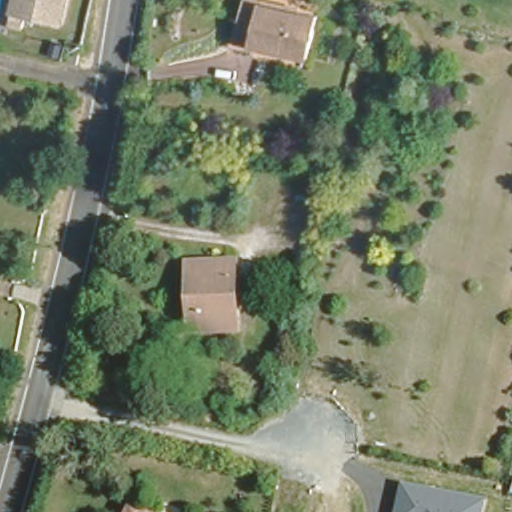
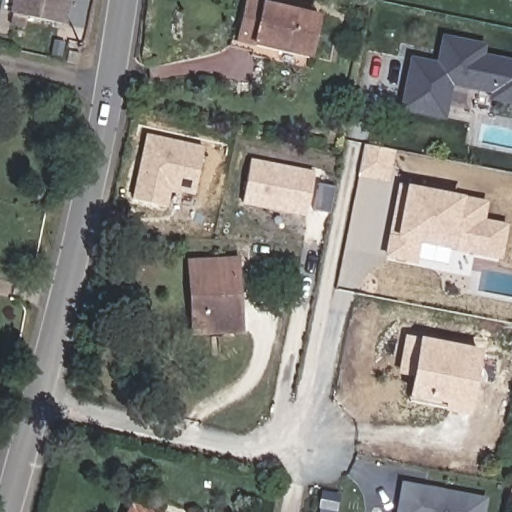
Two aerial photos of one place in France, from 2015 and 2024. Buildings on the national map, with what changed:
unchanged [(14,18),(18,0),(69,0),(64,27),(14,18)]
unchanged [(310,50),(240,33),(248,0),(276,0),(319,10),(310,50)]
new [(436,63),(442,36),(485,44),(483,54),(512,60),(512,105),(491,101),(491,93),(451,86),(445,118),(398,111),(410,56),(436,63)]
unchanged [(70,42),(82,44),(80,56),(69,54),(70,42)]
new [(194,195),(170,190),(166,207),(131,199),(146,133),(205,147),(194,195)]
new [(306,216),(242,204),(251,158),(315,171),(306,216)]
new [(487,201),(486,219),(508,223),(502,260),(452,251),(450,264),(419,258),(415,264),(383,258),(395,197),(404,199),(405,184),(487,201)]
unchanged [(235,256),(240,323),(196,327),(191,261),(235,256)]
new [(420,337),(482,349),(470,417),(442,412),(445,404),(408,397),(412,376),(397,374),(405,335),(420,337)]
unchanged [(401,482),(487,497),(484,512),(395,512),(401,482)]
unchanged [(132,500),(156,512),(127,512),(132,500)]

